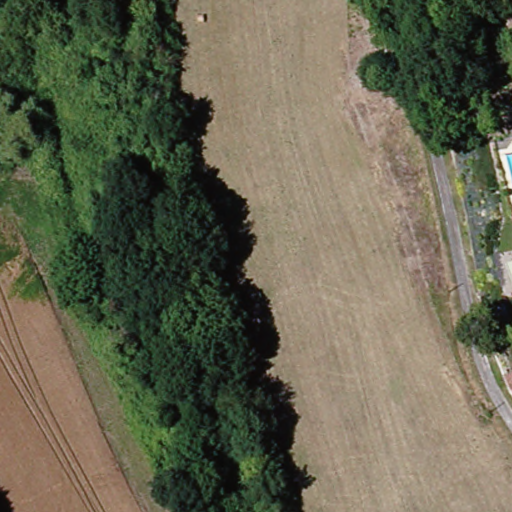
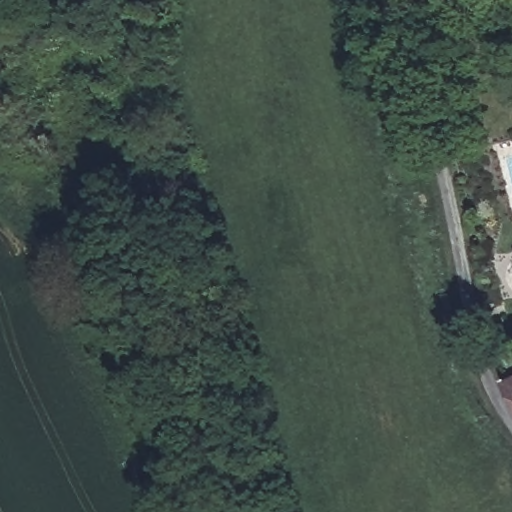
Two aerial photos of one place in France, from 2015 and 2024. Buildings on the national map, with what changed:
unchanged [(512,381),(512,409),(507,402),(499,385),(512,381)]

